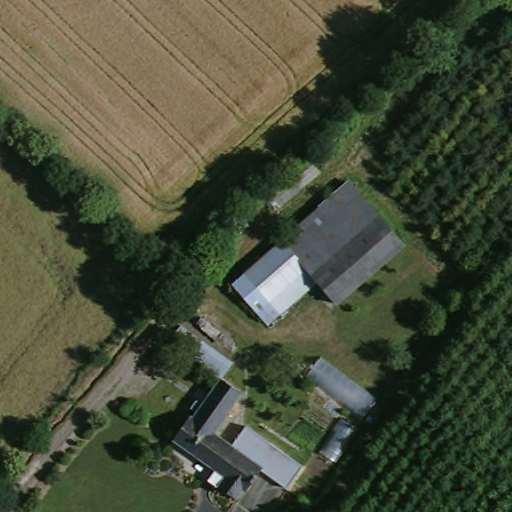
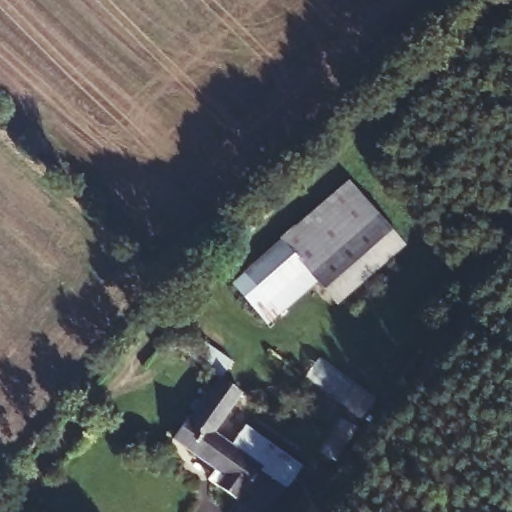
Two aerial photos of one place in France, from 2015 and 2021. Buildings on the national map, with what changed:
unchanged [(348,189),(380,230),(412,271),(344,325),(313,286),(279,244),(348,189)]
unchanged [(261,327),(228,285),(279,244),(313,286),(261,327)]
unchanged [(167,342),(174,332),(224,370),(216,380),(167,342)]
unchanged [(381,399),(373,411),(324,375),(334,362),(381,399)]
unchanged [(206,471),(164,441),(184,416),(189,420),(216,380),(238,397),(209,436),(228,450),(242,430),(299,473),(283,495),(254,475),(239,497),(232,493),(226,504),(212,492),(209,491),(199,483),(206,471)]

